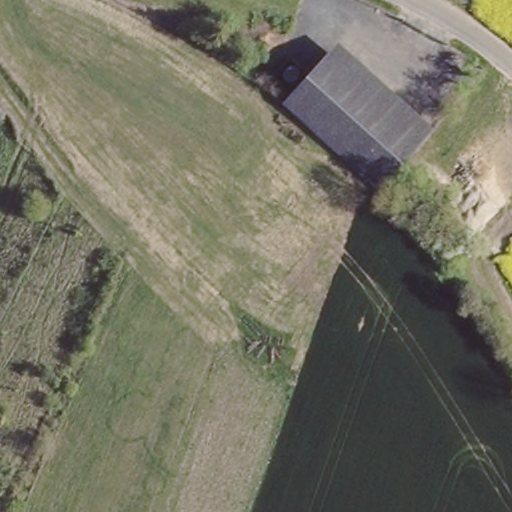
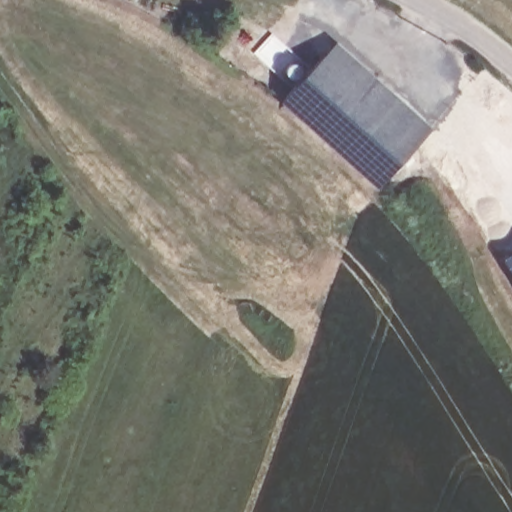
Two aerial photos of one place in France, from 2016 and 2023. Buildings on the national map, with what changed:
unchanged [(280,102),(332,47),(429,136),(424,141),(377,190),(280,102)]

